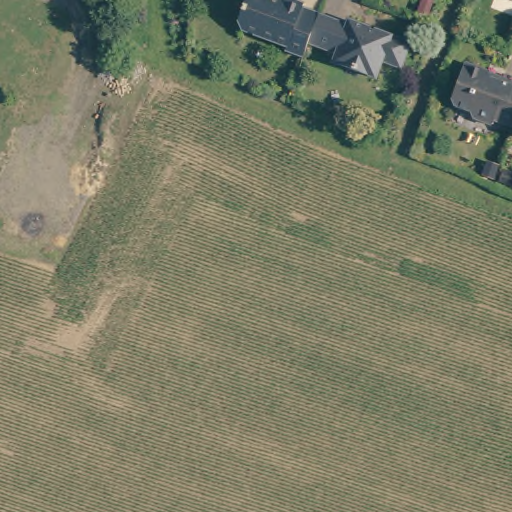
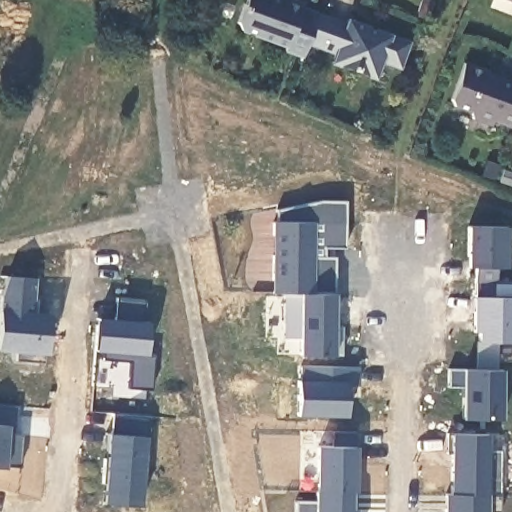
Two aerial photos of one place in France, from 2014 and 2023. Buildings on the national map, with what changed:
unchanged [(316,14),(306,40),(301,54),(282,47),(287,33),(245,18),(240,11),(243,0),(295,0),(303,3),(302,6),(316,12),(316,14)]
unchanged [(506,0),(512,0),(512,1),(510,1),(506,0)]
unchanged [(345,24),(347,19),(407,40),(398,65),(380,60),(373,77),(331,62),(334,51),(306,40),(316,14),(345,24)]
unchanged [(497,125),(478,117),(474,110),(458,104),(456,97),(469,62),(491,70),(512,77),(512,123),(499,118),(497,125)]
new [(274,221),(276,221),(277,209),(322,200),(347,200),(346,249),(325,247),(325,256),(336,256),(335,293),(285,292),(277,291),(272,291),(273,280),(274,221)]
new [(507,226),(506,267),(497,267),(496,281),(512,281),(512,297),(475,296),(475,267),(468,267),(468,256),(469,225),(507,226)]
new [(1,295),(6,276),(35,278),(32,313),(50,315),(47,353),(45,353),(44,363),(15,360),(16,350),(0,349),(0,307),(1,295)]
new [(285,292),(335,293),(334,313),(332,313),(331,326),(342,326),(341,355),(300,354),(300,338),(284,337),(285,292)]
new [(512,297),(512,342),(497,341),(496,369),(477,368),(478,341),(479,341),(479,331),(474,331),(475,296),(512,297)]
new [(145,300),(143,321),(148,321),(146,355),(154,355),(151,390),(128,388),(130,359),(117,358),(116,361),(102,360),(103,350),(96,350),(97,325),(97,318),(115,320),(116,297),(145,300)]
new [(298,380),(301,380),(301,365),(358,366),(358,385),(347,385),(347,388),(343,388),(343,398),(347,398),(347,416),(298,415),(298,380)]
new [(448,368),(477,368),(496,369),(502,369),(502,419),(463,418),(463,387),(448,387),(448,368)]
new [(19,406),(17,427),(6,426),(6,432),(23,434),(21,467),(5,466),(5,468),(0,468),(0,404),(19,406)]
new [(102,482),(105,458),(107,458),(108,434),(106,434),(106,433),(111,433),(112,413),(150,416),(147,457),(144,457),(140,506),(113,504),(103,502),(105,483),(102,482)]
new [(319,445),(332,446),(332,430),(357,431),(357,448),(355,447),(354,491),(318,490),(319,445)]
new [(447,433),(487,434),(487,449),(502,449),(501,495),(451,493),(452,453),(447,453),(447,433)]
new [(316,500),(316,490),(354,491),(356,491),(356,510),(351,509),(351,512),(296,512),(296,500),(316,500)]
new [(451,493),(501,495),(501,512),(446,512),(446,493),(451,493)]

